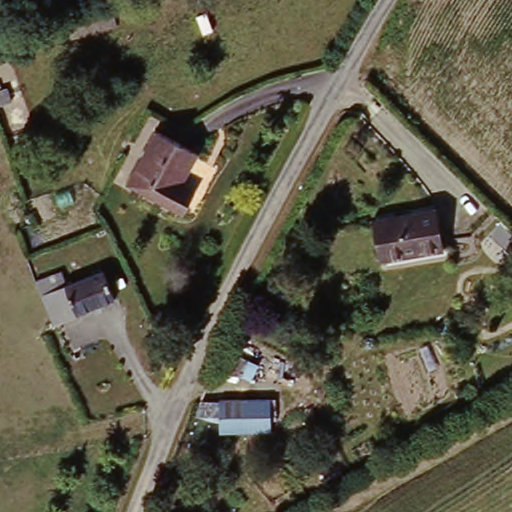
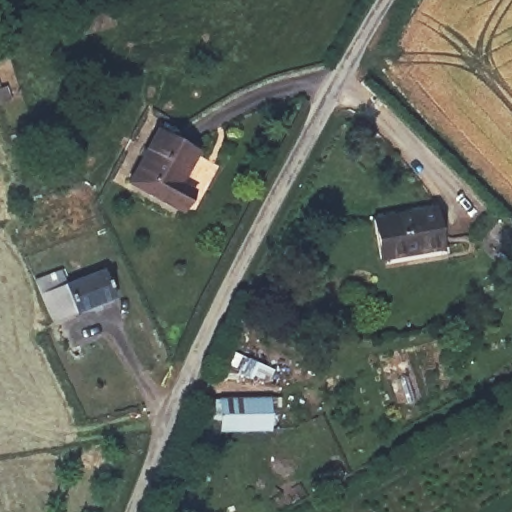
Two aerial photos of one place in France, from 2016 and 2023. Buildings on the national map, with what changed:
unchanged [(163,130),(202,150),(184,182),(200,190),(187,209),(134,181),(163,130)]
unchanged [(433,213),(440,250),(408,255),(409,259),(381,263),(375,221),(433,213)]
unchanged [(68,269),(73,283),(106,271),(119,299),(58,322),(39,280),(68,269)]
unchanged [(273,400),(275,430),(224,433),(224,402),(273,400)]

